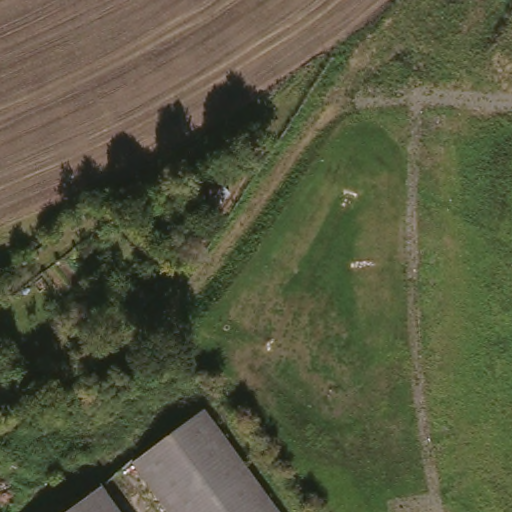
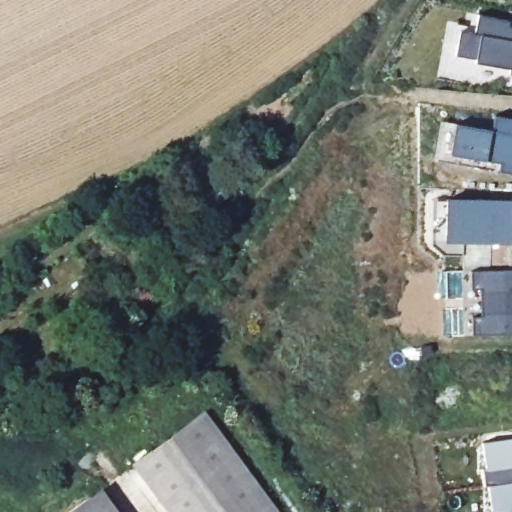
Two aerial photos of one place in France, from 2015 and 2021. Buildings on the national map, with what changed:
new [(473,34),(476,16),(509,22),(508,27),(512,28),(512,75),(508,74),(509,70),(474,64),(474,60),(453,56),(458,31),(473,34)]
new [(494,126),(495,111),(512,112),(512,168),(504,167),(505,158),(453,154),(456,122),(494,126)]
unchanged [(268,133),(239,174),(224,164),(252,122),(268,133)]
new [(447,200),(512,202),(511,243),(446,241),(447,200)]
new [(512,335),(472,336),(471,317),(480,316),(480,289),(471,290),(470,271),(512,270),(512,335)]
unchanged [(237,453),(284,512),(174,512),(139,468),(207,414),(237,453)]
new [(482,443),(512,439),(512,512),(492,512),(489,486),(485,487),(482,470),(486,469),(482,443)]
unchanged [(113,512),(74,512),(98,493),(113,512)]

